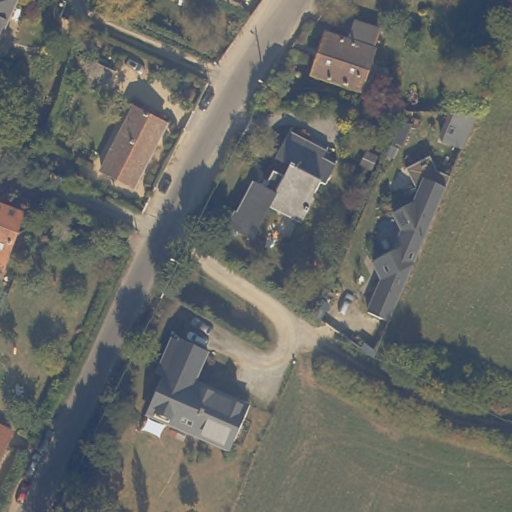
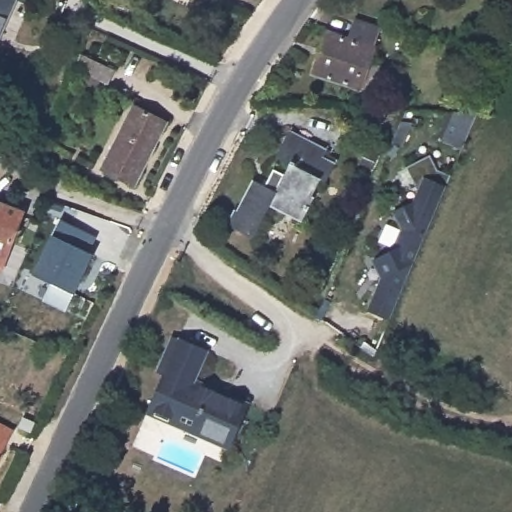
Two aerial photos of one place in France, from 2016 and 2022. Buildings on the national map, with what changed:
unchanged [(0,0),(14,0),(0,33),(0,0)]
unchanged [(205,0),(217,0),(216,4),(205,0)]
unchanged [(362,81),(358,87),(311,69),(325,30),(345,36),(352,19),(378,28),(368,58),(382,65),(374,86),(362,81)]
unchanged [(112,66),(106,80),(98,76),(94,84),(76,76),(80,68),(74,65),(79,50),(112,66)]
unchanged [(165,125),(133,186),(103,171),(133,110),(165,125)]
new [(454,111),(478,113),(476,117),(463,148),(443,139),(452,116),(454,111)]
unchanged [(325,151),(338,156),(329,176),(326,175),(319,191),(320,193),(311,216),(277,203),(262,239),(237,229),(242,213),(245,213),(258,180),(270,185),(277,169),(286,172),(290,160),(277,154),(287,128),(328,144),(325,151)]
unchanged [(366,151),(377,156),(372,170),(360,165),(366,151)]
unchanged [(392,321),(370,312),(384,279),(374,261),(395,250),(403,230),(394,212),(415,200),(418,192),(405,166),(429,155),(436,170),(450,175),(392,321)]
unchanged [(3,259),(0,258),(0,195),(25,205),(3,259)]
unchanged [(58,210),(53,220),(46,217),(51,207),(58,210)]
new [(62,218),(100,237),(94,252),(75,295),(65,312),(44,301),(53,284),(33,275),(53,236),(62,218)]
unchanged [(197,435),(173,425),(148,414),(151,409),(166,376),(158,373),(174,337),(181,340),(182,338),(210,351),(197,381),(229,395),(252,405),(233,447),(232,451),(197,435)]
unchanged [(0,452),(0,414),(16,422),(0,452)]

